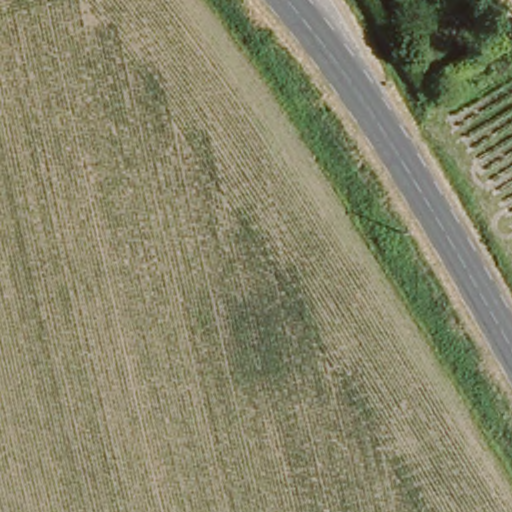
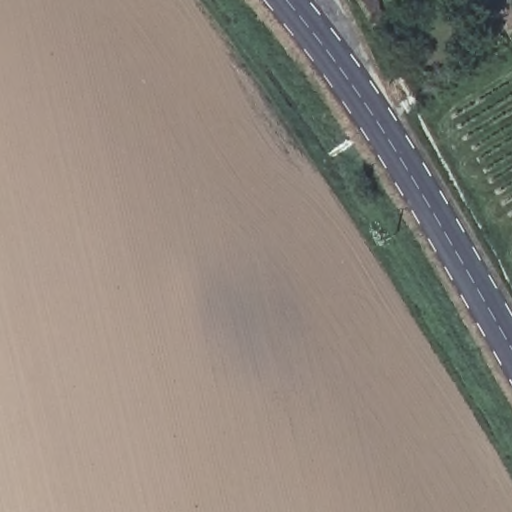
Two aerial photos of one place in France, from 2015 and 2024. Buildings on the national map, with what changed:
unchanged [(501,37),(481,0),(512,0),(512,33),(501,37)]

